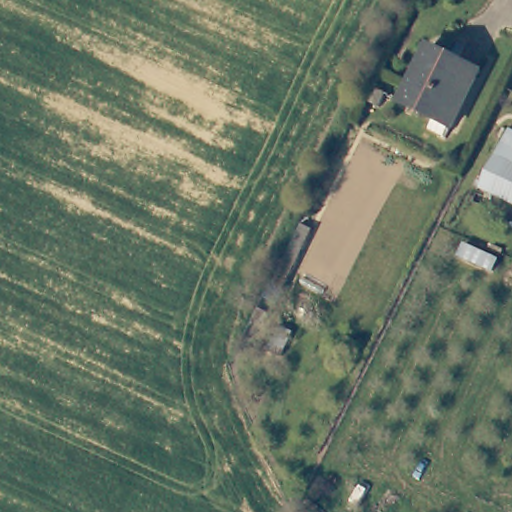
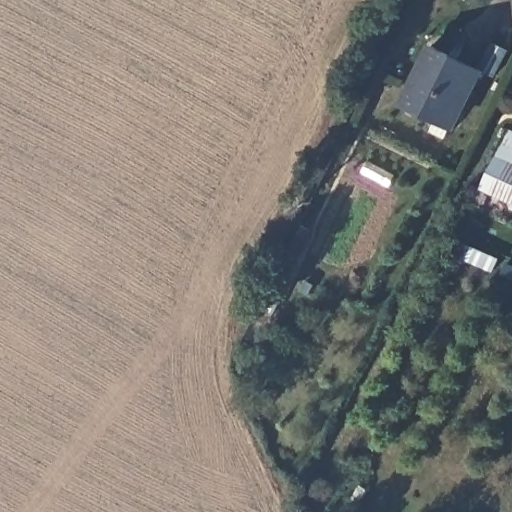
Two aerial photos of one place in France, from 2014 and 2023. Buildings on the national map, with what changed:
unchanged [(399,104),(429,45),(478,70),(448,127),(399,104)]
unchanged [(494,157),(507,131),(512,134),(512,165),(494,157)]
unchanged [(479,189),(494,157),(512,165),(512,204),(479,189)]

